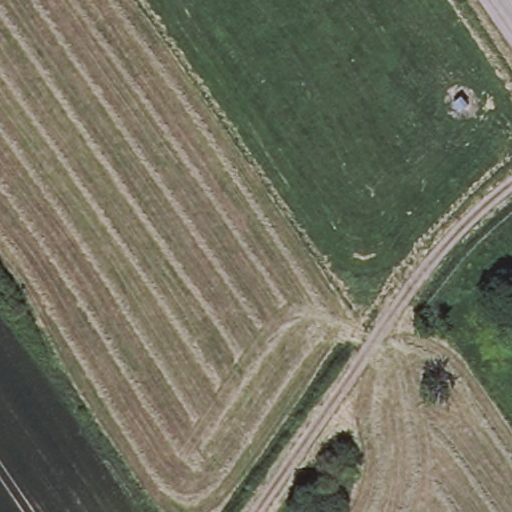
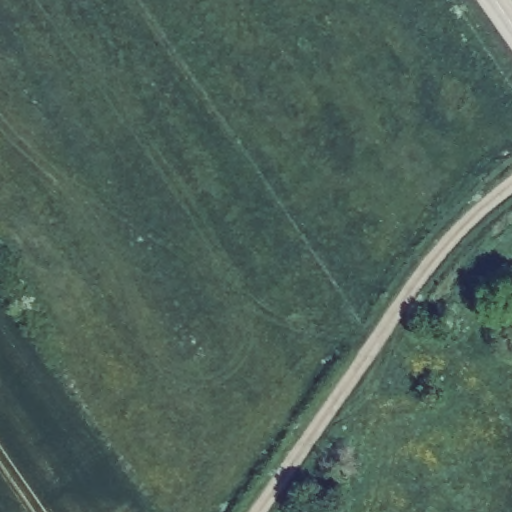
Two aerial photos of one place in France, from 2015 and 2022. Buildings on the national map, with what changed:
[]

